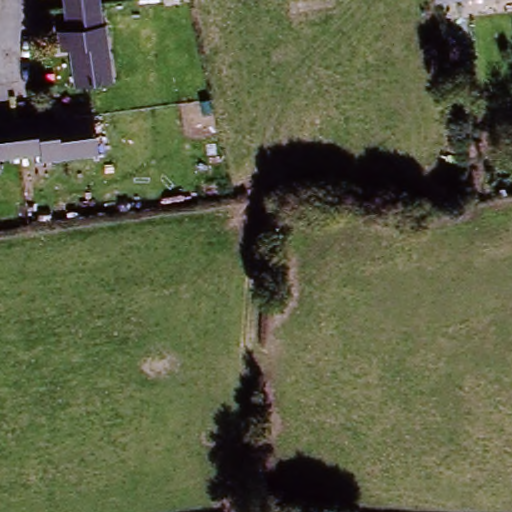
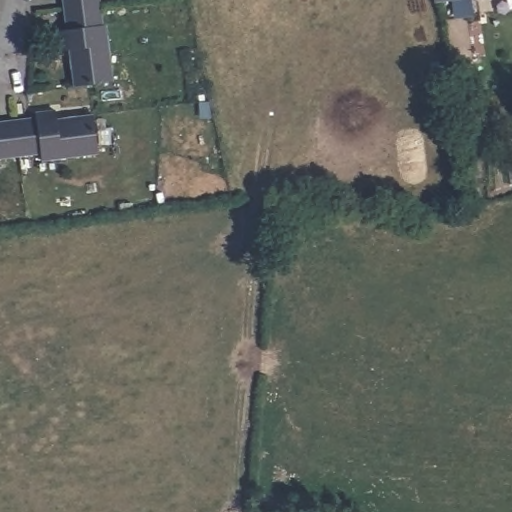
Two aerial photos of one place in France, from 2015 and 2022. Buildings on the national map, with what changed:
unchanged [(65,33),(62,12),(61,0),(98,0),(99,7),(101,28),(104,27),(111,85),(88,88),(73,90),(68,54),(58,55),(55,34),(65,33)]
unchanged [(475,0),(435,5),(434,0),(475,0)]
unchanged [(452,78),(471,75),(475,94),(455,97),(452,78)]
unchanged [(15,125),(35,122),(35,117),(54,115),(55,122),(92,118),(96,157),(41,164),(40,156),(19,159),(0,161),(0,127),(15,125)]

